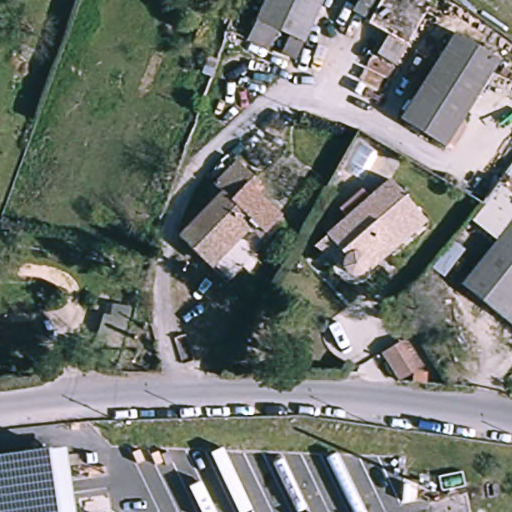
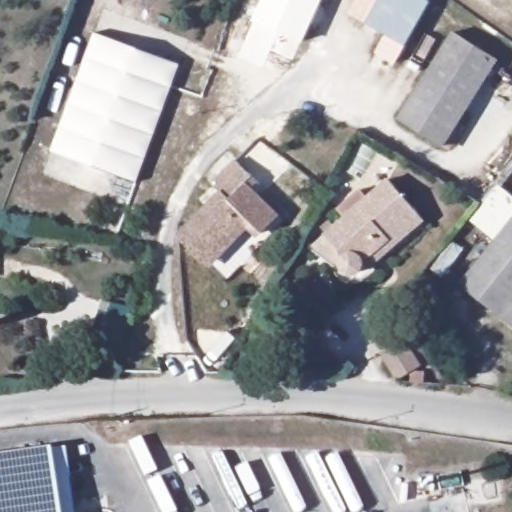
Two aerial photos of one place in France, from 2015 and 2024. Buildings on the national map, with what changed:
unchanged [(275,0),(328,0),(312,35),(268,16),(275,0)]
unchanged [(353,0),(424,0),(430,4),(390,70),(371,55),(381,35),(345,15),(353,0)]
new [(95,32),(179,63),(136,181),(51,150),(95,32)]
unchanged [(455,37),(495,64),(437,145),(397,120),(455,37)]
unchanged [(242,220),(201,264),(172,237),(215,194),(205,185),(227,163),(251,184),(245,191),(269,214),(252,230),(242,220)]
unchanged [(387,182),(420,217),(391,244),(387,240),(362,264),(363,269),(362,275),(358,278),(353,280),(347,280),(343,276),(340,271),(340,266),(342,261),(345,258),(323,236),(387,182)]
unchanged [(490,241),(467,221),(497,185),(512,197),(512,329),(453,283),(490,241)]
unchanged [(277,220),(217,280),(201,264),(242,220),(252,230),(269,214),(277,220)]
unchanged [(450,237),(464,250),(437,285),(422,270),(450,237)]
new [(98,301),(128,308),(118,351),(88,344),(98,301)]
unchanged [(375,355),(402,337),(418,367),(392,383),(375,355)]
unchanged [(0,512),(0,453),(47,446),(50,450),(65,448),(74,512),(0,512)]

